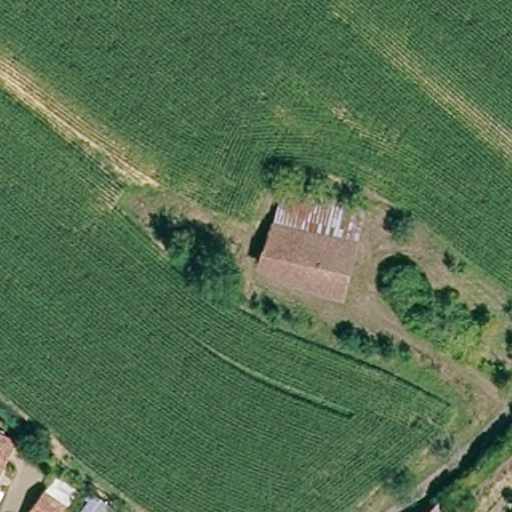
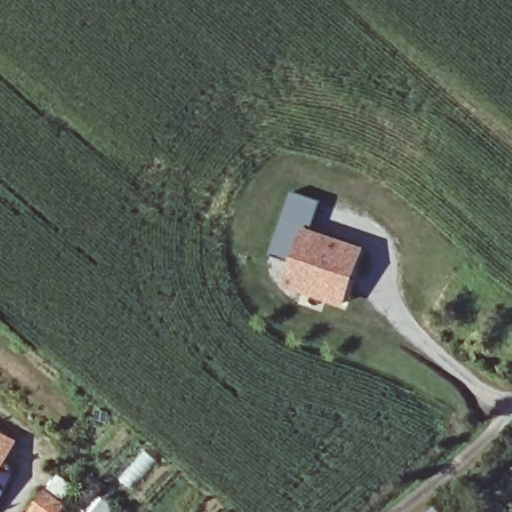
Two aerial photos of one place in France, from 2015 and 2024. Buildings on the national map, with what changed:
unchanged [(286,288),(258,269),(273,224),(285,187),(366,211),(346,300),(286,288)]
unchanged [(0,432),(11,438),(0,461),(0,432)]
unchanged [(65,512),(29,512),(44,488),(70,503),(65,512)]
unchanged [(437,504),(446,512),(429,512),(437,504)]

